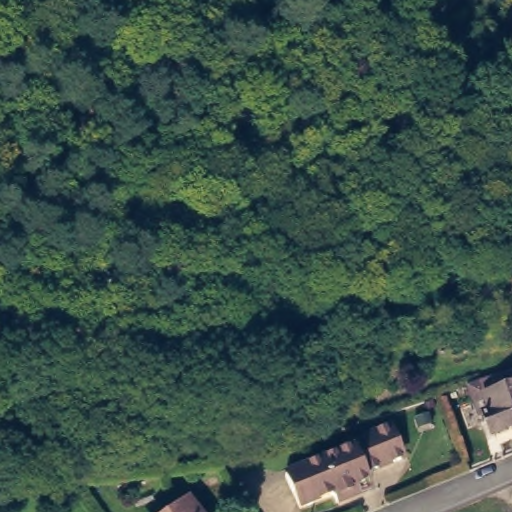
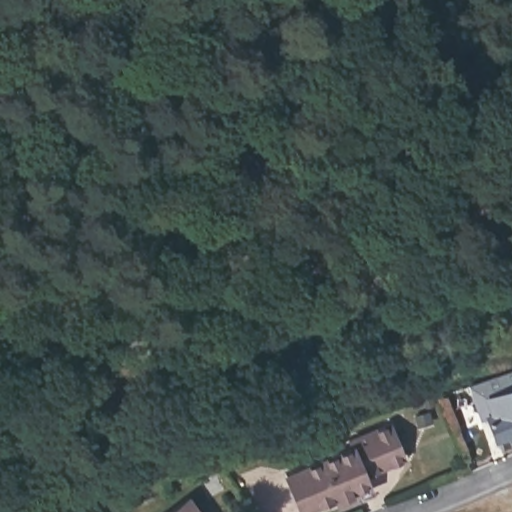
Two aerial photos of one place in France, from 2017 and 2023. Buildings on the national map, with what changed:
unchanged [(512,373),(512,431),(485,441),(475,417),(470,401),(465,389),(512,373)]
unchanged [(400,412),(414,408),(417,417),(403,420),(400,412)]
unchanged [(339,486),(305,500),(290,468),(320,455),(350,429),(350,431),(369,423),(390,414),(404,447),(383,456),(365,463),(369,472),(374,482),(342,495),(339,486)]
unchanged [(186,488),(204,512),(156,512),(186,488)]

